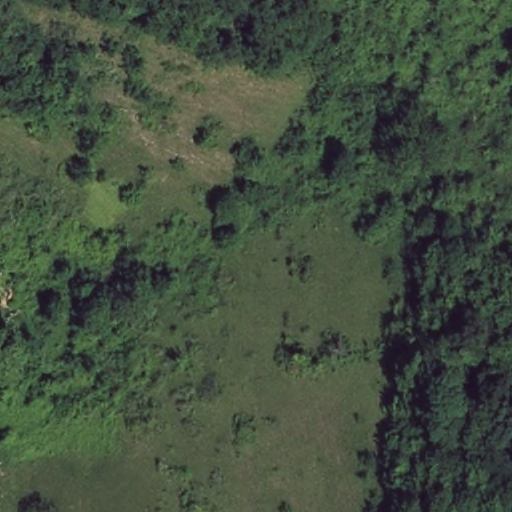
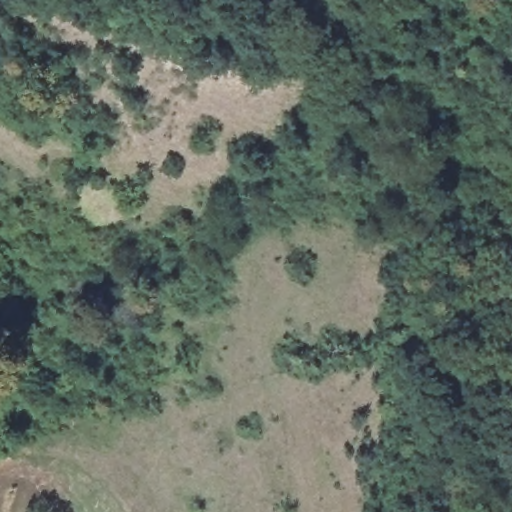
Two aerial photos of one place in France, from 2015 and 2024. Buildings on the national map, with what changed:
unchanged [(0,276),(30,306),(5,333),(0,328),(0,276)]

